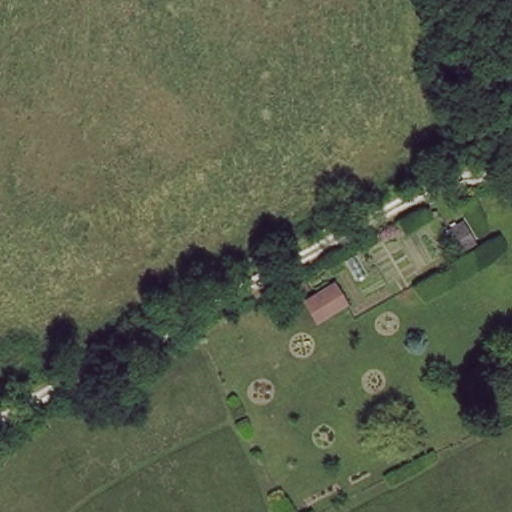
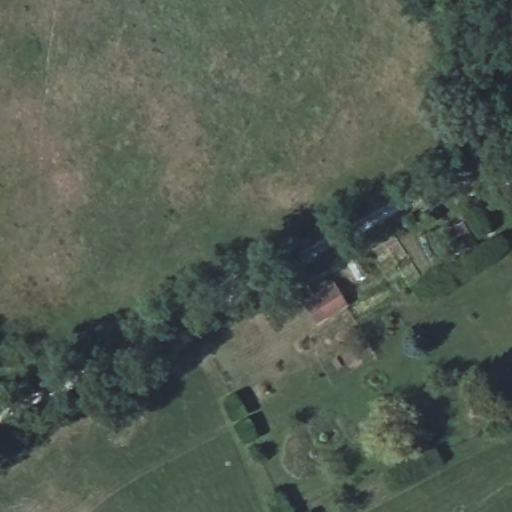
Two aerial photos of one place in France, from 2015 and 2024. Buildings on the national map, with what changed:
[]

